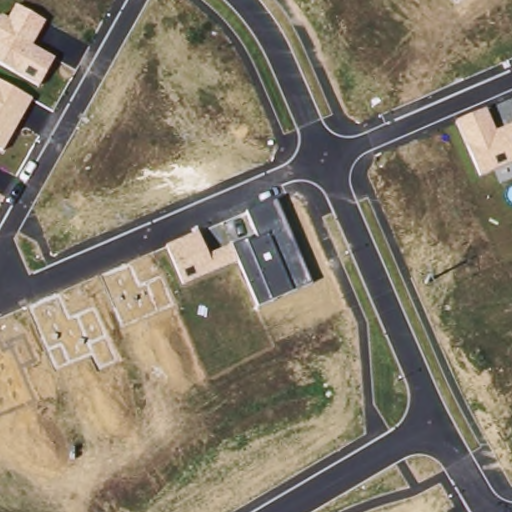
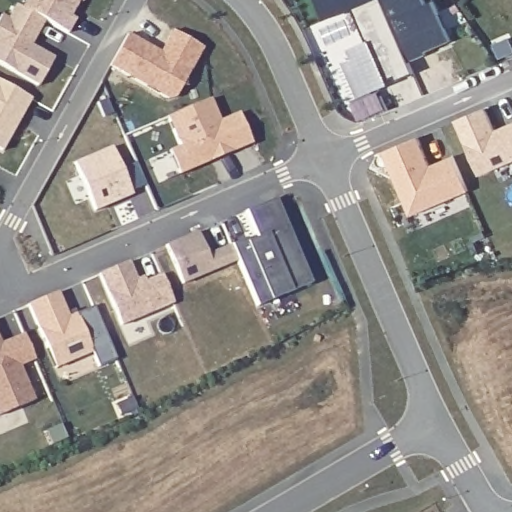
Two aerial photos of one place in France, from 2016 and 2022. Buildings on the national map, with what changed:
new [(22,7),(26,0),(79,0),(71,15),(75,17),(67,33),(45,21),(22,7)]
new [(411,61),(415,72),(398,80),(395,75),(386,79),(388,83),(360,94),(347,63),(355,60),(351,50),(367,43),(352,9),(327,18),(319,0),(385,0),(411,61)]
new [(427,1),(431,0),(436,0),(452,40),(427,51),(428,54),(411,61),(385,0),(427,0),(427,1)]
unchanged [(0,64),(0,17),(1,15),(8,19),(17,4),(45,21),(32,45),(55,57),(40,85),(0,64)]
new [(128,33),(142,41),(153,48),(161,52),(173,30),(204,48),(176,97),(169,98),(110,65),(116,54),(128,33)]
unchanged [(0,149),(0,81),(32,99),(4,151),(0,149)]
new [(180,174),(170,150),(181,146),(168,116),(212,98),(221,120),(241,112),(254,143),(233,152),(211,161),(180,174)]
unchanged [(486,109),(496,132),(512,125),(512,162),(480,174),(457,121),(486,109)]
new [(419,139),(431,168),(454,158),(468,193),(411,217),(384,153),(419,139)]
unchanged [(239,262),(183,283),(166,246),(198,231),(209,254),(231,244),(245,238),(248,243),(257,240),(246,214),(278,201),(311,282),(292,290),(258,307),(239,262)]
new [(137,281),(144,278),(146,283),(162,276),(175,305),(122,327),(100,276),(130,263),(137,281)]
new [(67,314),(75,310),(77,315),(94,308),(116,361),(98,369),(92,354),(68,364),(60,344),(47,350),(28,306),(58,293),(67,314)]
new [(0,345),(7,342),(23,335),(34,361),(20,367),(34,402),(0,416),(0,344),(0,345)]

